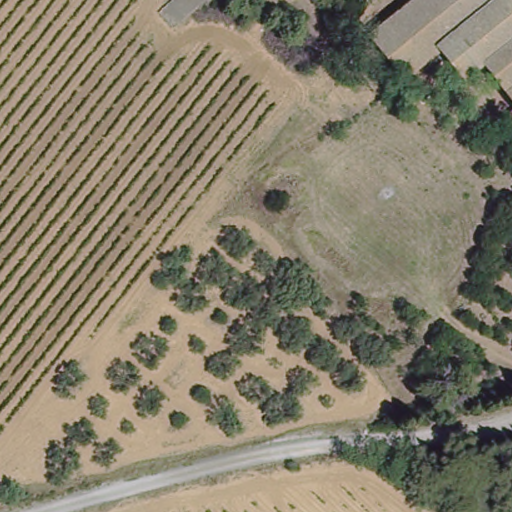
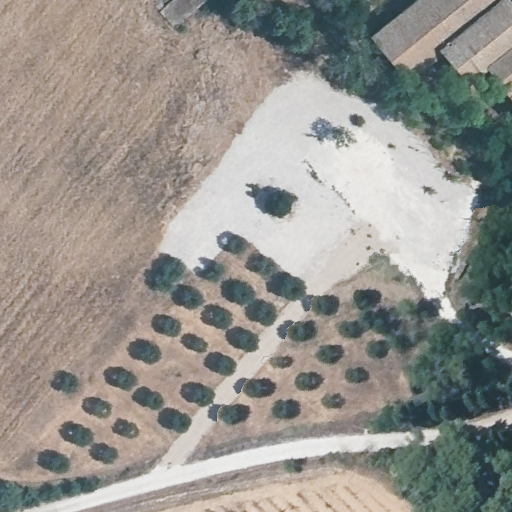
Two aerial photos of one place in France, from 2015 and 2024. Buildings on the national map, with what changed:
unchanged [(405,76),(371,33),(411,0),(511,0),(512,2),(512,96),(485,62),(465,77),(447,56),(420,77),(414,69),(405,76)]

